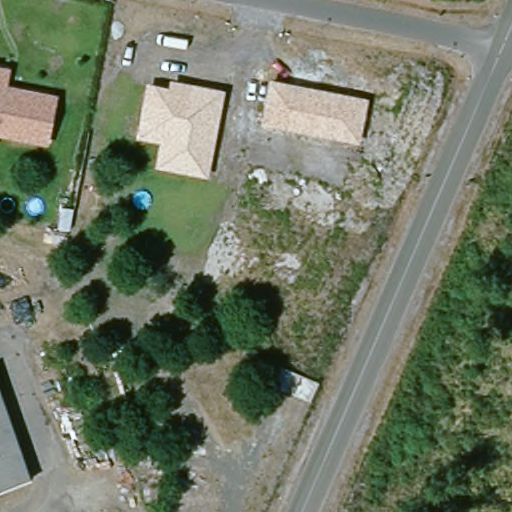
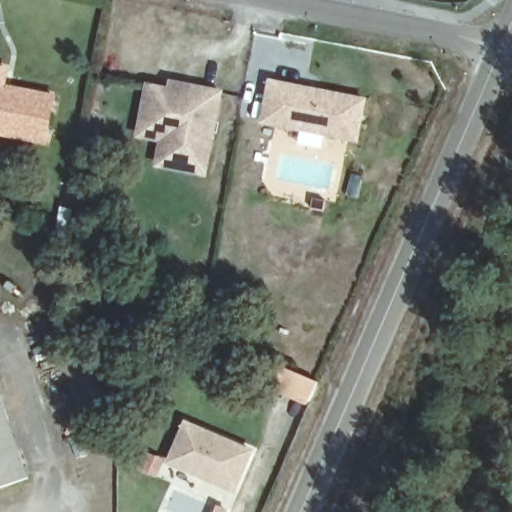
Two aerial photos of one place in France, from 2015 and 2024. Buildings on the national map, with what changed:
unchanged [(5,85),(55,96),(47,143),(0,133),(0,65),(10,67),(5,85)]
unchanged [(260,125),(268,79),(368,98),(360,144),(260,125)]
unchanged [(154,169),(159,143),(136,139),(145,84),(168,88),(170,80),(225,90),(209,179),(154,169)]
unchanged [(0,407),(25,475),(0,484),(0,407)]
new [(185,419),(253,448),(235,491),(167,462),(185,419)]

